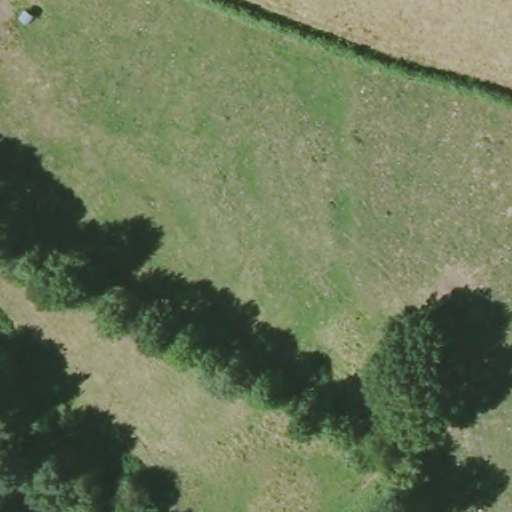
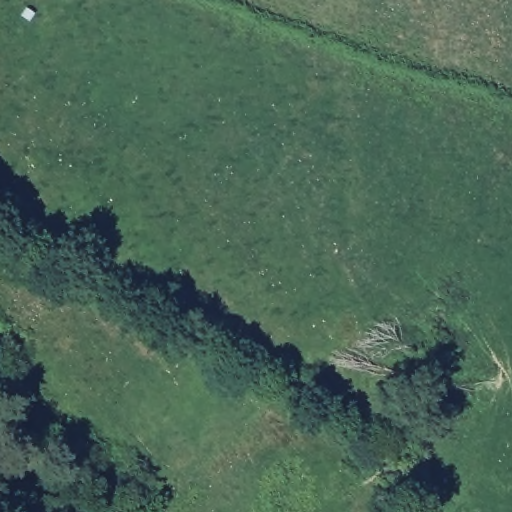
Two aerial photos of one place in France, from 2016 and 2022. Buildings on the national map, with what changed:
[]

